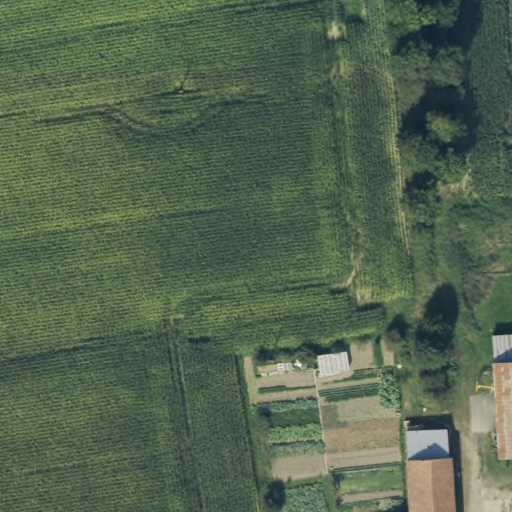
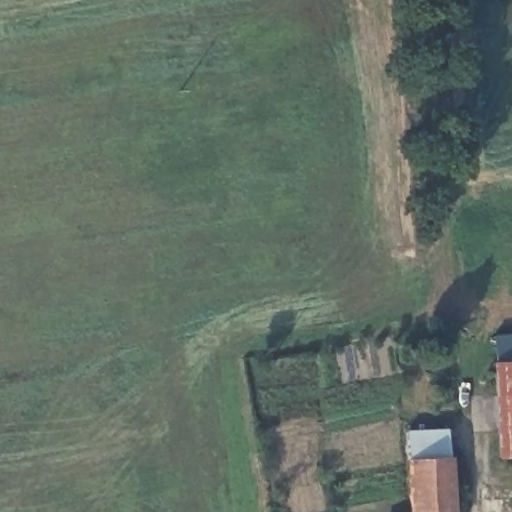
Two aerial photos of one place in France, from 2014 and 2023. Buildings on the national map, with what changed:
unchanged [(512,363),(494,366),(492,339),(512,337),(512,363)]
unchanged [(512,460),(504,461),(494,366),(512,363),(512,460)]
unchanged [(442,461),(403,465),(400,437),(440,431),(442,461)]
unchanged [(403,465),(442,461),(449,512),(408,512),(403,465)]

